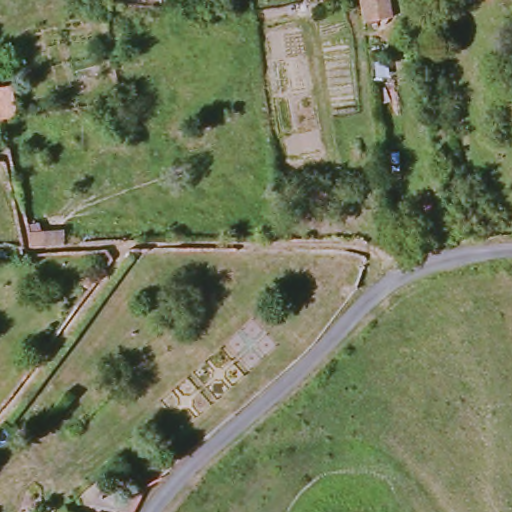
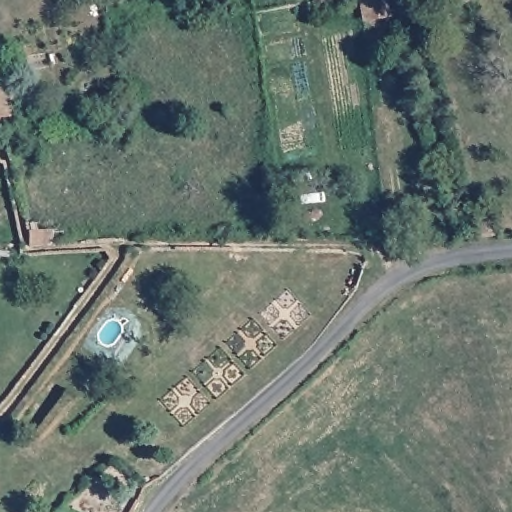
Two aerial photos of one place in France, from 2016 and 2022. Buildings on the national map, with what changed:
unchanged [(391,0),(393,5),(371,9),(369,0),(391,0)]
unchanged [(481,212),(494,211),(497,235),(483,237),(481,212)]

